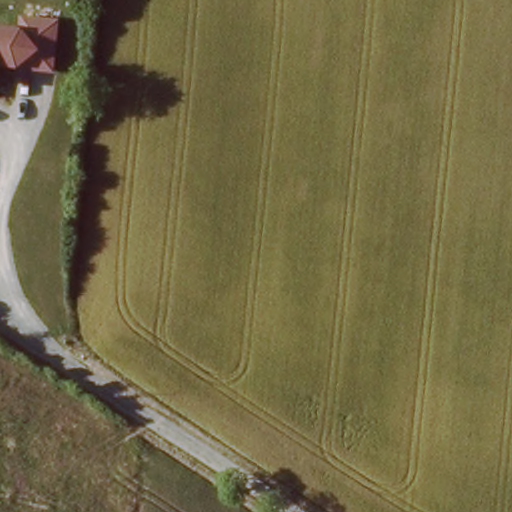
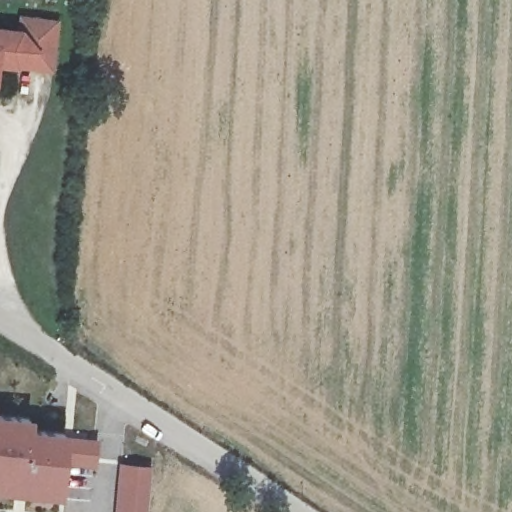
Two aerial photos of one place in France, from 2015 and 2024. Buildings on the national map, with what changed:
unchanged [(4,70),(0,73),(0,26),(16,27),(19,13),(60,17),(57,73),(4,70)]
new [(68,465),(64,503),(0,496),(0,418),(36,422),(35,434),(70,437),(69,444),(95,445),(93,468),(68,465)]
new [(148,512),(117,512),(121,462),(152,464),(148,512)]

